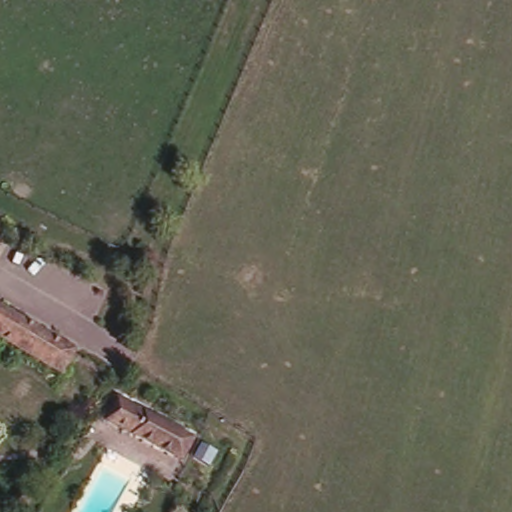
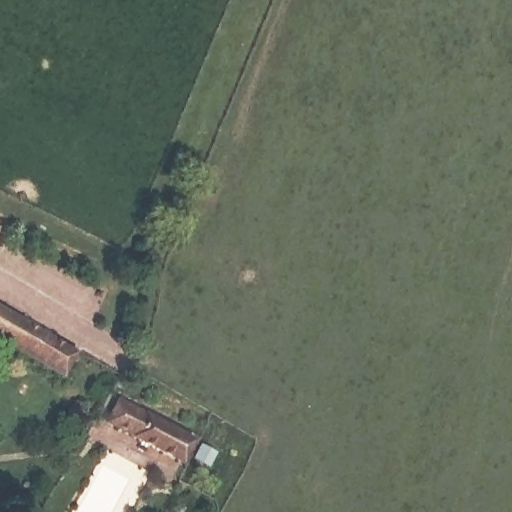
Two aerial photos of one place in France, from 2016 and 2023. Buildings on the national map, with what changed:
unchanged [(0,341),(0,311),(76,353),(65,378),(0,341)]
unchanged [(201,438),(184,468),(106,426),(122,399),(201,438)]

